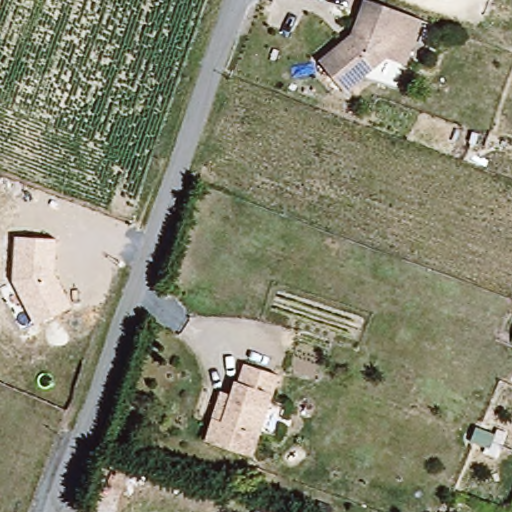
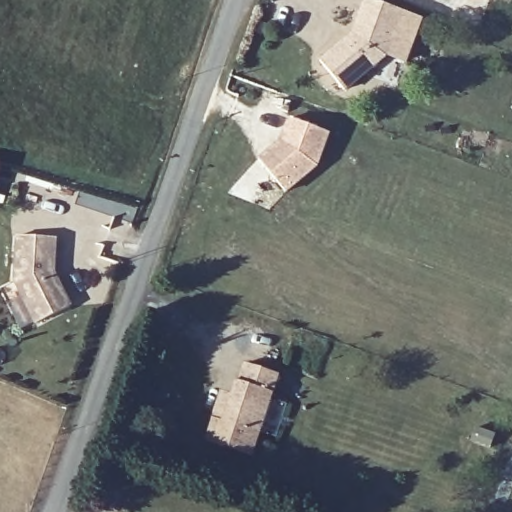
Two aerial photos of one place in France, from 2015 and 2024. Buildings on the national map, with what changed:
unchanged [(314,62),(348,33),(361,0),(366,0),(397,12),(416,19),(398,63),(380,55),(340,90),(314,62)]
new [(331,133),(320,165),(287,192),(258,157),(280,140),(287,120),(331,133)]
unchanged [(56,238),(54,271),(72,304),(35,324),(12,281),(15,237),(56,238)]
unchanged [(274,432),(257,427),(251,452),(203,438),(209,415),(217,389),(228,392),(231,380),(236,382),(242,362),(274,372),(267,395),(284,400),(274,432)]

